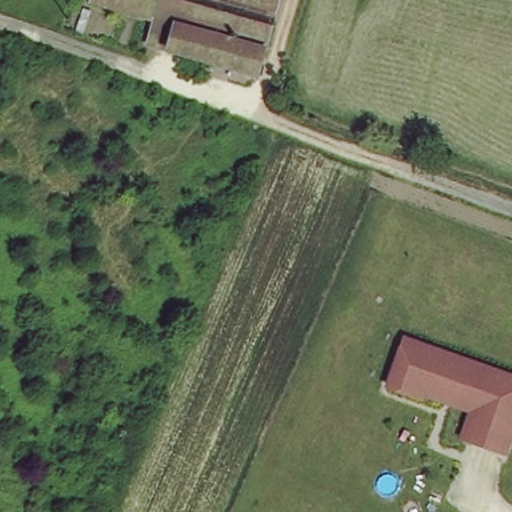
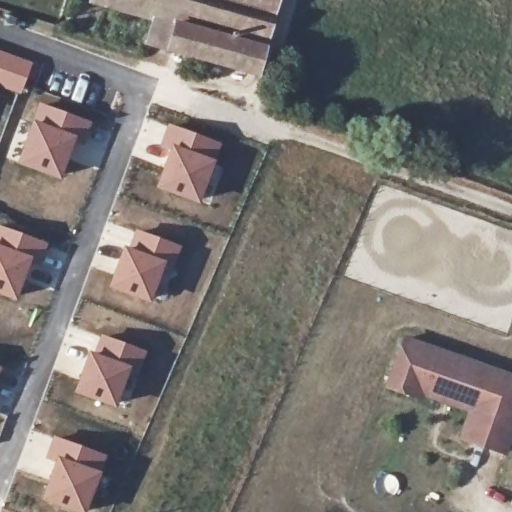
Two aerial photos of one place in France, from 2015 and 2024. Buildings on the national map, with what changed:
unchanged [(260,77),(155,50),(161,25),(100,7),(102,0),(281,0),(260,77)]
new [(32,61),(20,95),(0,90),(0,50),(32,61)]
new [(37,102),(91,120),(86,134),(78,130),(77,136),(30,119),(37,102)]
new [(30,119),(77,136),(60,180),(15,165),(30,119)]
new [(164,157),(156,154),(167,122),(221,142),(199,205),(153,188),(164,157)]
new [(47,241),(43,254),(35,251),(32,256),(0,245),(0,225),(47,241)]
new [(135,229),(180,245),(171,268),(164,265),(165,261),(127,247),(135,229)]
new [(32,256),(15,301),(0,296),(0,245),(32,256)]
new [(122,245),(127,247),(165,261),(164,265),(150,303),(107,287),(122,245)]
unchanged [(512,438),(507,452),(455,436),(464,408),(382,383),(397,332),(512,370),(512,438)]
new [(99,334),(145,350),(137,372),(130,370),(115,408),(72,392),(87,350),(92,352),(99,334)]
new [(1,365),(0,368),(0,365),(1,365)]
new [(43,458),(52,435),(105,454),(85,512),(71,512),(39,500),(52,461),(43,458)]

